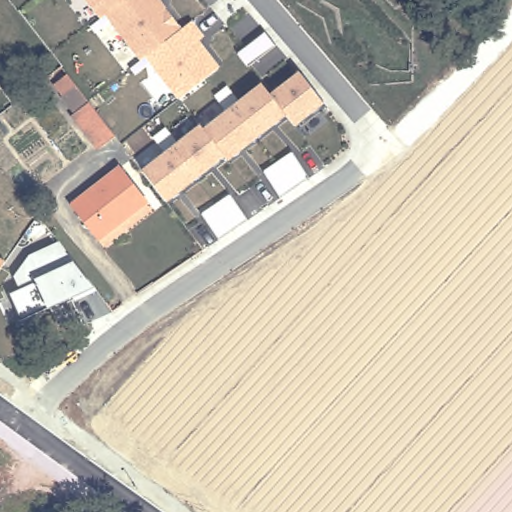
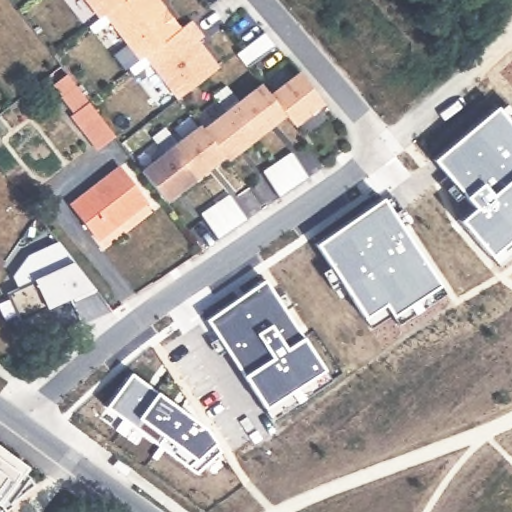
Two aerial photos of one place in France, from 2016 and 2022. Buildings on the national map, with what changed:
unchanged [(182,29),(192,21),(206,37),(201,41),(221,69),(179,100),(147,56),(140,61),(106,17),(103,20),(88,0),(159,0),(182,29)]
unchanged [(274,45),(247,69),(236,54),(265,30),(274,45)]
unchanged [(323,101),(295,124),(287,115),(228,160),(224,155),(165,200),(143,170),(202,125),(205,130),(262,85),(270,97),(300,72),(323,101)]
unchanged [(56,85),(68,75),(76,85),(116,136),(99,149),(75,119),(75,114),(62,97),(64,95),(56,85)]
new [(498,265),(487,255),(456,218),(472,205),(464,196),(432,159),(496,106),(512,124),(512,253),(498,265)]
unchanged [(280,195),(264,169),(292,151),(308,175),(280,195)]
unchanged [(71,205),(120,167),(147,200),(97,239),(71,205)]
unchanged [(217,237),(201,211),(230,193),(247,218),(217,237)]
new [(399,325),(391,316),(384,306),(364,319),(314,244),(380,197),(438,285),(444,293),(399,325)]
unchanged [(97,291),(73,301),(71,296),(47,307),(33,306),(19,315),(9,292),(20,287),(12,276),(28,252),(57,240),(97,291)]
unchanged [(0,267),(0,257),(4,260),(0,267)]
new [(264,410),(241,375),(204,318),(264,277),(303,336),(323,370),(264,410)]
new [(193,476),(183,468),(181,470),(99,408),(128,372),(156,392),(205,428),(213,441),(220,450),(193,476)]
new [(0,500),(0,446),(25,465),(0,500)]
new [(0,512),(0,505),(3,509),(0,512)]

